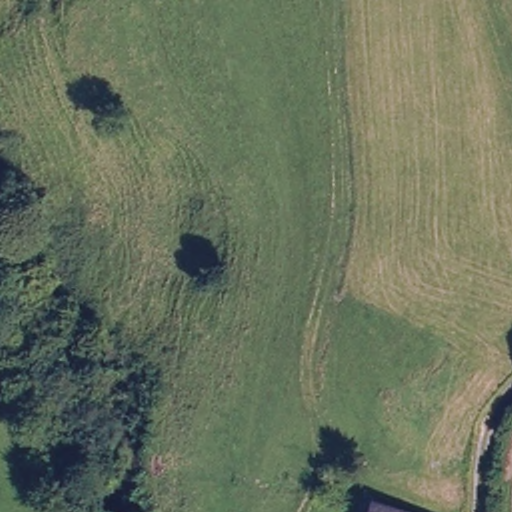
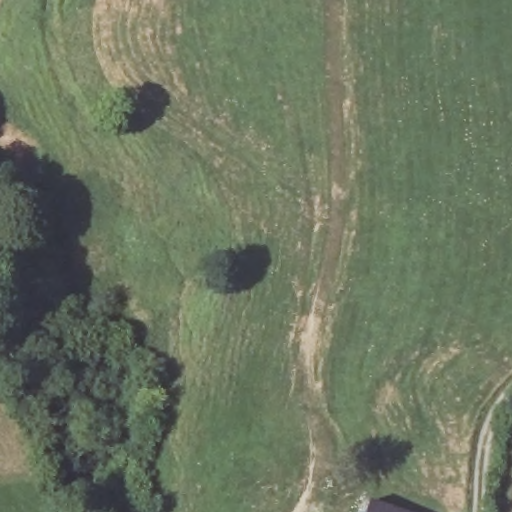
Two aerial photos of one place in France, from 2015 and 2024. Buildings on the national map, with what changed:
unchanged [(372,495),(431,512),(366,512),(372,495)]

